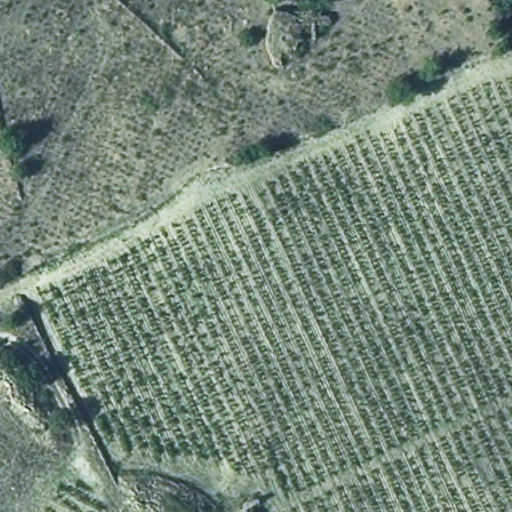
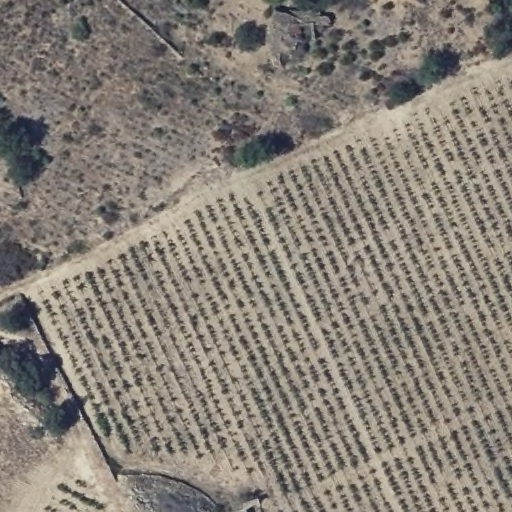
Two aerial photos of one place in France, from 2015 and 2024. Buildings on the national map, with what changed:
unchanged [(244,512),(217,512),(238,504),(244,512)]

